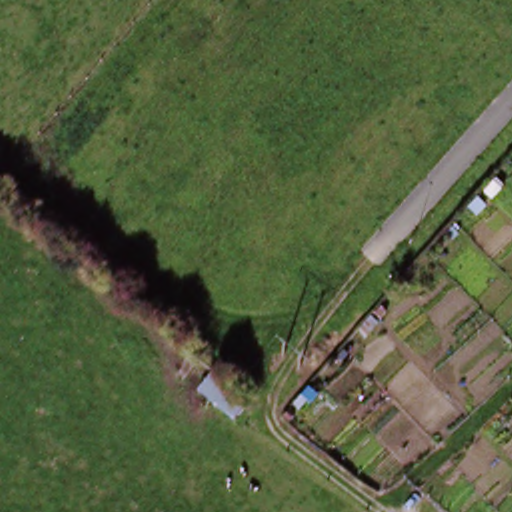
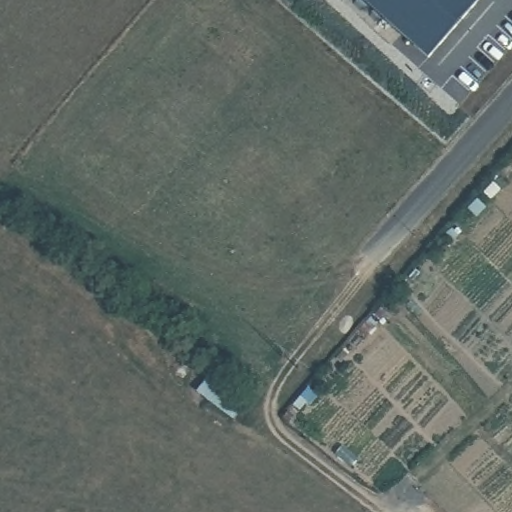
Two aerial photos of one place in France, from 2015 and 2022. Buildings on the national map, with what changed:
new [(489,0),(433,64),(362,0),(489,0)]

